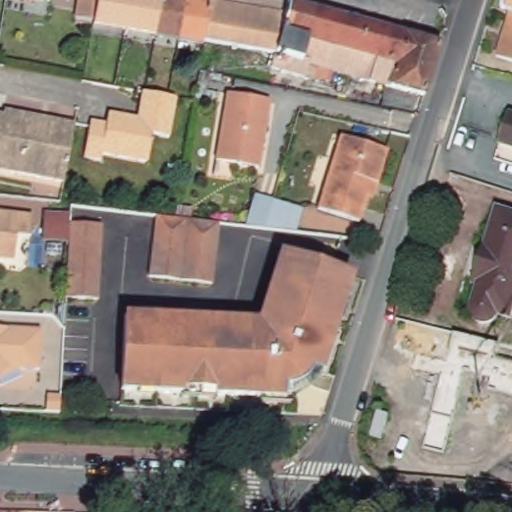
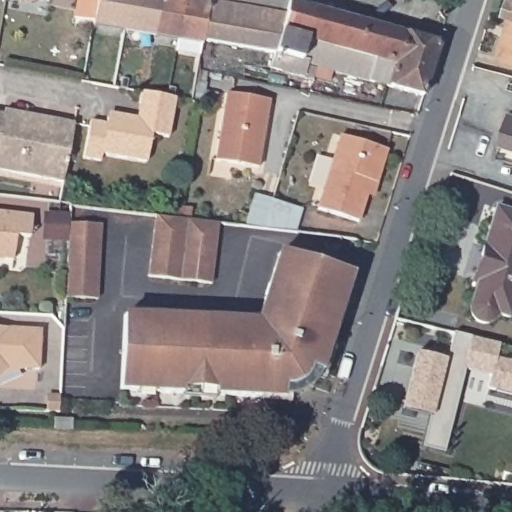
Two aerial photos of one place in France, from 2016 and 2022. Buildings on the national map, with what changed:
unchanged [(31,0),(43,0),(42,2),(31,0)]
unchanged [(87,22),(69,19),(73,0),(124,0),(119,27),(87,22)]
unchanged [(433,47),(430,55),(417,97),(395,91),(365,82),(323,71),(304,65),(300,77),(265,69),(265,67),(262,66),(262,67),(241,62),(242,60),(235,59),(237,47),(206,42),(197,41),(173,37),(150,32),(119,27),(124,0),(183,0),(203,4),(204,0),(265,0),(369,29),(433,47)]
unchanged [(512,0),(512,18),(504,15),(509,0),(512,0)]
unchanged [(512,18),(512,64),(492,57),(504,15),(512,18)]
unchanged [(265,101),(254,169),(211,162),(222,94),(265,101)]
unchanged [(105,129),(106,122),(112,117),(136,122),(140,97),(144,97),(167,101),(173,102),(167,140),(151,137),(146,165),(102,159),(101,166),(83,162),(89,126),(105,129)]
unchanged [(3,112),(32,117),(53,121),(74,124),(73,129),(66,171),(64,183),(15,175),(0,172),(0,117),(2,117),(3,112)]
unchanged [(505,112),(512,115),(512,147),(495,142),(505,112)]
unchanged [(387,149),(377,182),(372,181),(359,222),(317,209),(340,135),(387,149)]
unchanged [(298,204),(291,227),(258,224),(267,195),(298,204)]
unchanged [(32,234),(18,232),(15,256),(0,254),(0,208),(34,212),(32,234)]
unchanged [(512,214),(512,308),(508,319),(496,315),(493,321),(489,323),(486,324),(481,325),(475,321),(471,317),(470,312),(471,308),(478,288),(471,286),(496,209),(512,214)]
unchanged [(176,214),(216,217),(222,219),(215,280),(153,272),(160,212),(176,214)]
unchanged [(73,219),(104,220),(101,295),(70,293),(73,219)]
unchanged [(357,276),(327,373),(317,371),(315,376),(309,382),(301,387),(293,388),(285,387),(284,397),(126,390),(130,315),(264,322),(285,254),(357,276)]
unchanged [(39,365),(6,363),(0,370),(0,323),(40,325),(39,365)]
new [(418,355),(449,362),(456,335),(504,347),(500,361),(512,364),(512,396),(489,391),(493,377),(467,371),(446,455),(425,450),(432,420),(443,376),(415,368),(418,355)]
new [(415,368),(443,376),(432,420),(404,412),(415,368)]

